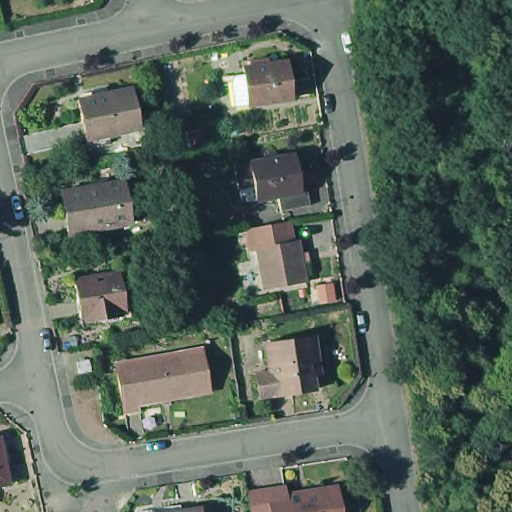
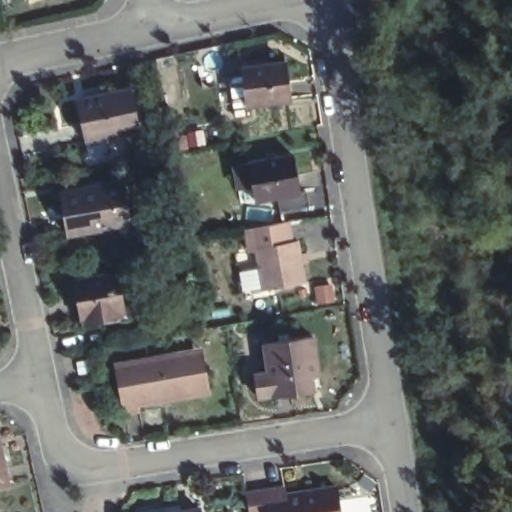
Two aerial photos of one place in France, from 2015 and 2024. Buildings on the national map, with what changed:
unchanged [(249,75),(291,68),(297,106),(254,112),(249,75)]
unchanged [(83,147),(82,140),(73,100),(127,89),(136,127),(103,135),(104,143),(83,147)]
unchanged [(243,166),(254,164),(298,156),(305,192),(261,201),(251,202),(243,166)]
unchanged [(65,241),(57,199),(118,187),(119,191),(134,189),(140,226),(125,228),(126,230),(65,241)]
unchanged [(314,206),(286,211),(283,197),(311,192),(314,206)]
unchanged [(249,247),(244,226),(287,219),(291,238),(298,237),(306,278),(264,287),(256,246),(249,247)]
unchanged [(83,334),(81,325),(74,287),(119,279),(126,317),(128,326),(83,334)]
unchanged [(258,380),(271,377),(267,350),(314,342),(320,377),(313,378),(316,397),(276,403),(261,405),(258,380)]
unchanged [(136,407),(120,410),(111,361),(178,350),(197,346),(201,367),(204,388),(185,392),(135,401),(136,407)]
unchanged [(73,363),(84,361),(87,372),(74,375),(73,363)]
unchanged [(13,485),(0,487),(0,438),(3,437),(13,485)]
unchanged [(254,506),(273,502),(273,501),(291,498),(291,506),(343,497),(345,512),(256,512),(254,506)]

